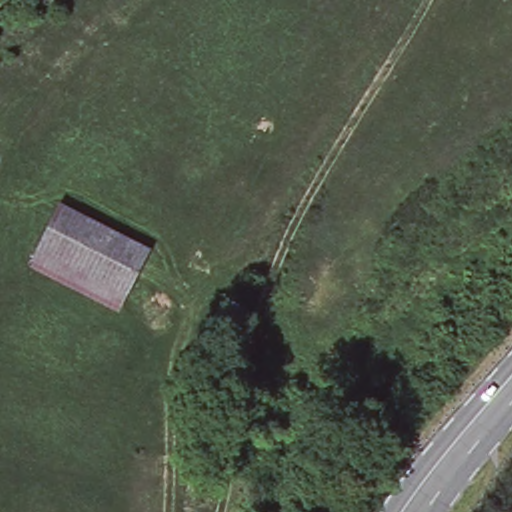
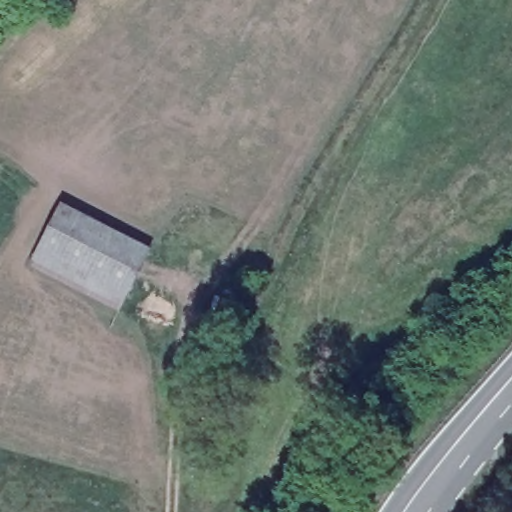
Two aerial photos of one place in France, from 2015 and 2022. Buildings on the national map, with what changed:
unchanged [(63,209),(149,261),(122,306),(36,255),(63,209)]

